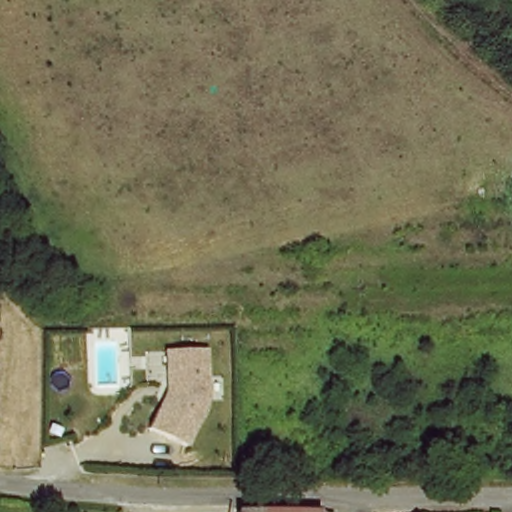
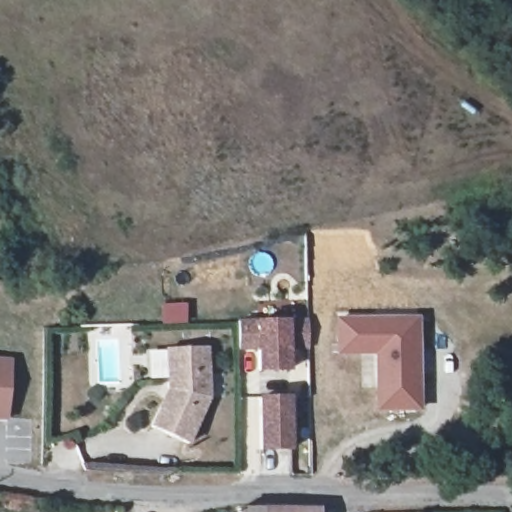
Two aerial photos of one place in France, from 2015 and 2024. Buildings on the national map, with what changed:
new [(420,316),(422,411),(374,413),(373,356),(336,357),(334,317),(420,316)]
new [(288,319),(310,317),(311,350),(293,351),(293,373),(257,374),(257,352),(238,353),(238,321),(256,320),(288,319)]
unchanged [(171,355),(185,354),(213,353),(216,403),(194,448),(156,431),(170,403),(173,395),(173,373),(171,355)]
new [(10,422),(0,421),(0,357),(15,358),(10,422)]
new [(293,396),(294,451),(259,452),(258,397),(293,396)]
unchanged [(238,510),(266,510),(319,510),(319,512),(238,512),(238,510)]

